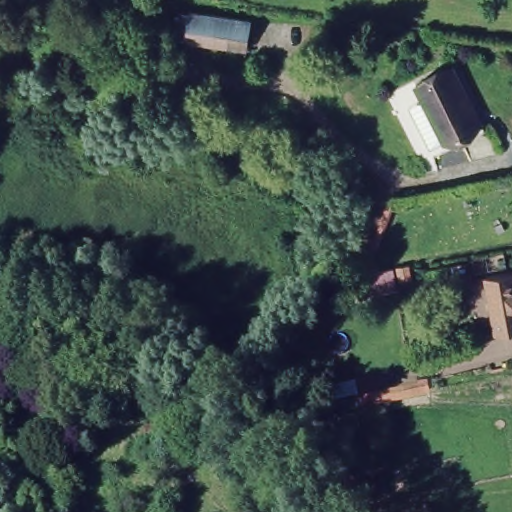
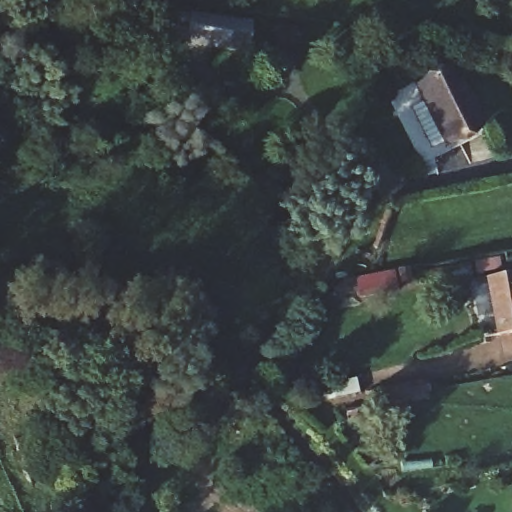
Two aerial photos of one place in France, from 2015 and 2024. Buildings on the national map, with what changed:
unchanged [(245,57),(188,45),(175,43),(181,12),(194,15),(252,27),(245,57)]
unchanged [(456,66),(481,123),(444,138),(419,81),(456,66)]
unchanged [(512,279),(512,332),(496,336),(482,276),(510,270),(512,279)]

